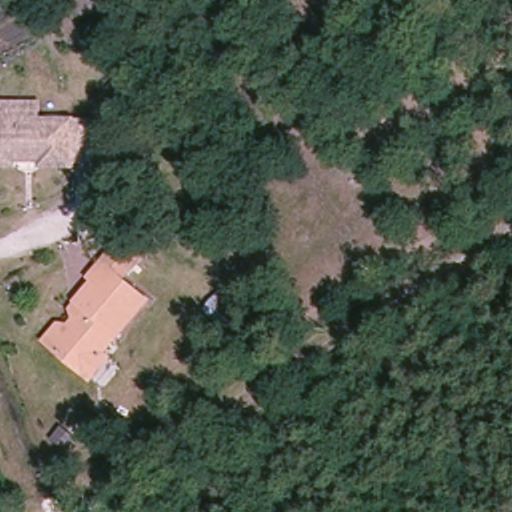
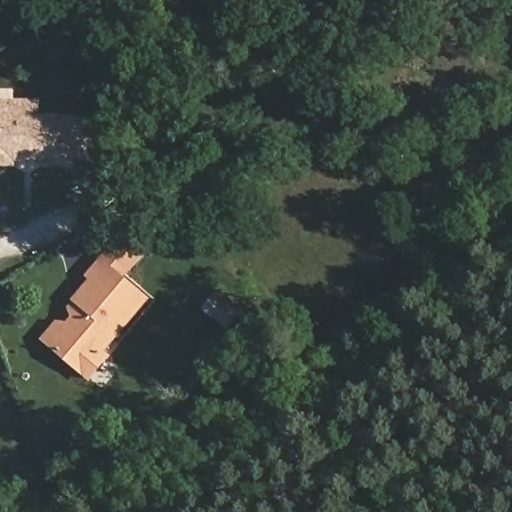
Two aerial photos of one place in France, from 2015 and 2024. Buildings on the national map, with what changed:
unchanged [(206,12),(213,7),(233,41),(217,51),(187,0),(199,0),(206,12)]
unchanged [(69,165),(69,171),(36,169),(37,159),(15,157),(15,167),(0,166),(0,101),(23,102),(23,119),(71,122),(71,127),(95,128),(91,166),(69,165)]
unchanged [(76,371),(45,345),(39,339),(53,324),(60,330),(71,317),(76,321),(83,314),(71,305),(92,282),(87,277),(100,263),(121,238),(140,254),(118,278),(148,303),(100,355),(104,360),(86,380),(76,371)]
unchanged [(243,307),(231,318),(213,299),(225,288),(243,307)]

